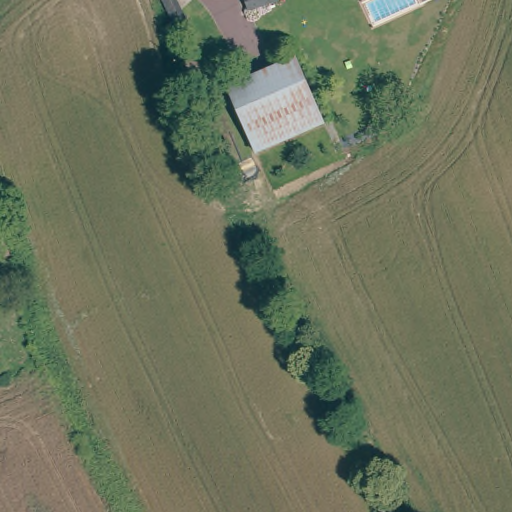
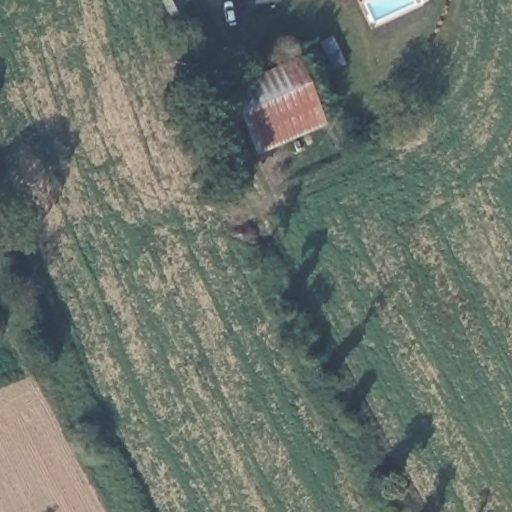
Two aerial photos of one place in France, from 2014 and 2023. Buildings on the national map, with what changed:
unchanged [(177,0),(187,22),(176,27),(163,0),(177,0)]
unchanged [(245,0),(276,0),(276,1),(247,9),(245,0)]
unchanged [(294,57),(322,124),(255,152),(227,87),(294,57)]

